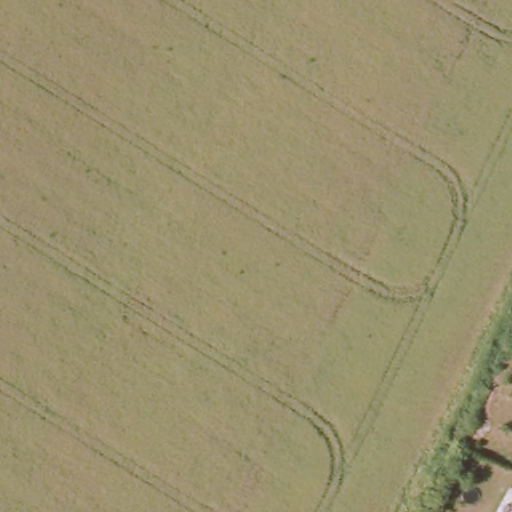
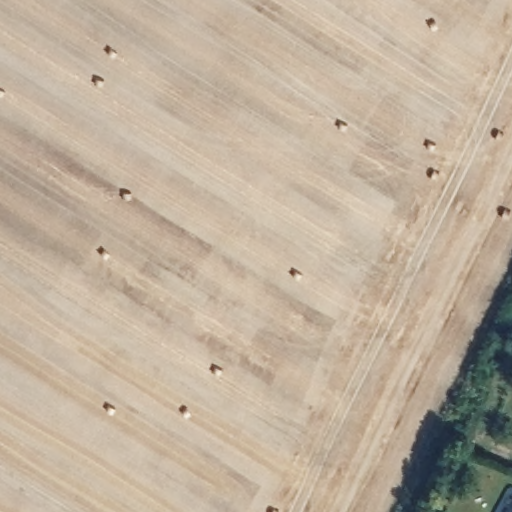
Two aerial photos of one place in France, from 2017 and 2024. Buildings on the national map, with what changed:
unchanged [(512,508),(512,512),(510,512),(512,508)]

